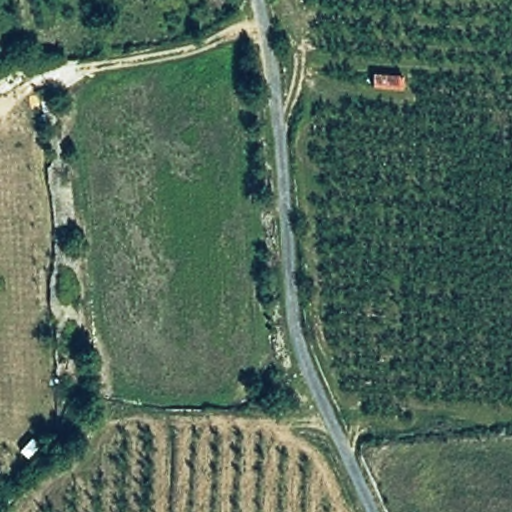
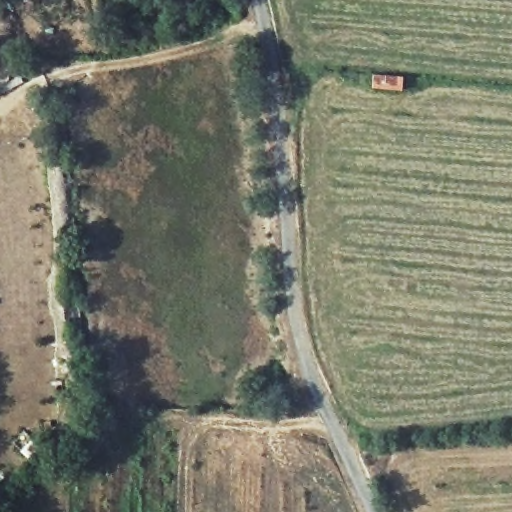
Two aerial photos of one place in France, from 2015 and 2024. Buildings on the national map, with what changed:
unchanged [(403,77),(402,92),(370,87),(371,73),(403,77)]

